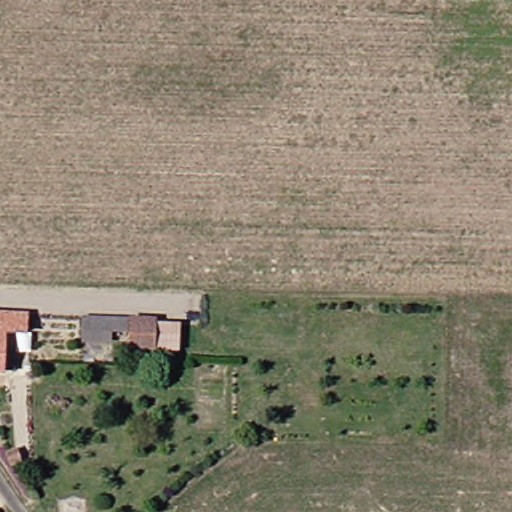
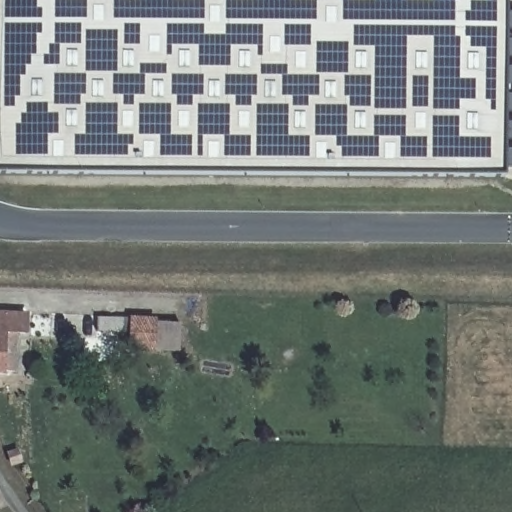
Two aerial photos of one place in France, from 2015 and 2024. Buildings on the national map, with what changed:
new [(503,177),(0,175),(0,0),(505,0),(503,177)]
unchanged [(0,366),(0,310),(24,312),(24,330),(16,328),(12,367),(0,366)]
unchanged [(125,340),(96,339),(82,338),(83,322),(97,322),(125,322),(125,340)]
unchanged [(177,352),(169,352),(130,352),(130,322),(153,322),(153,326),(170,325),(178,326),(177,352)]
unchanged [(86,494),(86,511),(61,510),(61,493),(86,494)]

